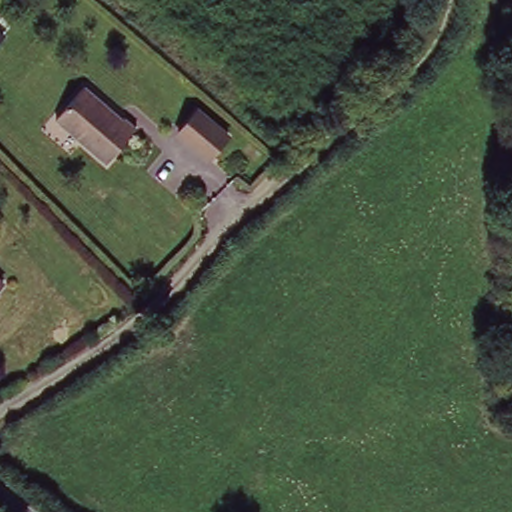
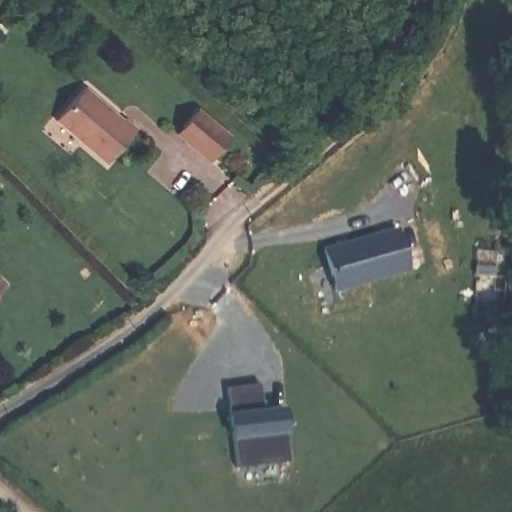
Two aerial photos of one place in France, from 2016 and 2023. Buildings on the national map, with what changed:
unchanged [(87,86),(112,109),(113,106),(140,128),(108,164),(58,119),(87,86)]
unchanged [(200,111),(229,136),(208,161),(178,134),(200,111)]
new [(396,229),(409,271),(332,292),(320,252),(396,229)]
unchanged [(9,279),(0,289),(0,270),(9,279)]
new [(288,481),(244,480),(244,441),(228,442),(229,381),(286,379),(288,481)]

